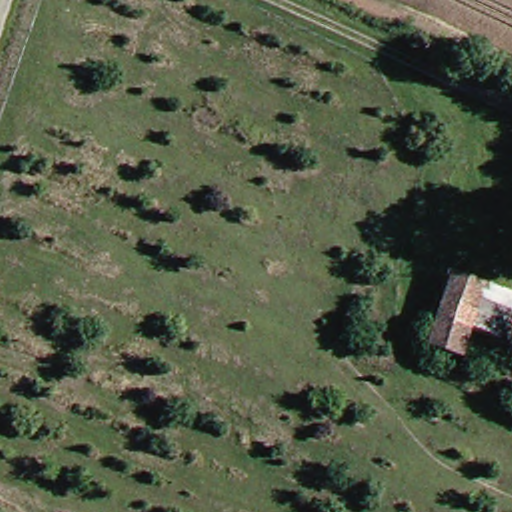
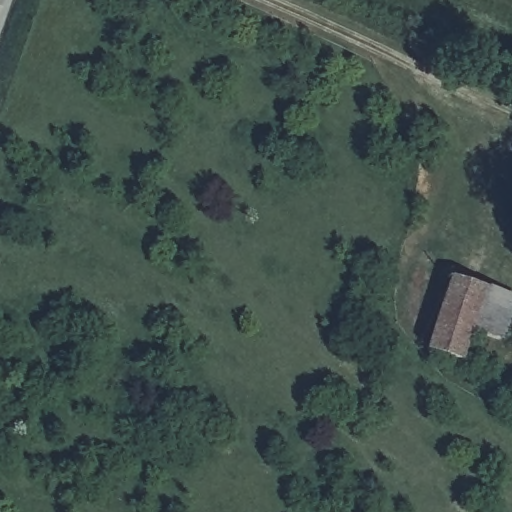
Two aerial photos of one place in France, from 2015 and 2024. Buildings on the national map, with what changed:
unchanged [(471,357),(436,348),(460,279),(494,288),(493,290),(479,330),(476,339),(471,357)]
unchanged [(512,335),(510,339),(479,330),(493,290),(512,295),(512,335)]

